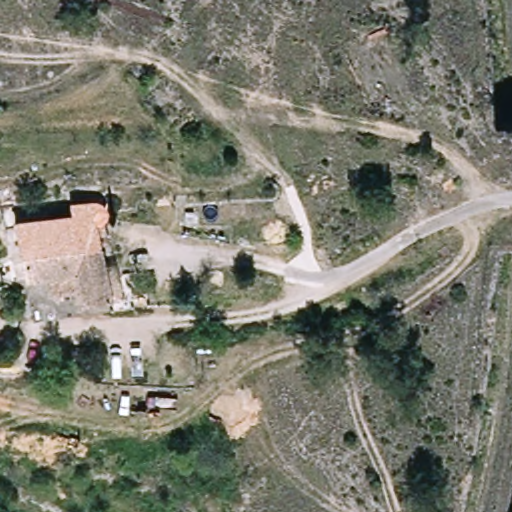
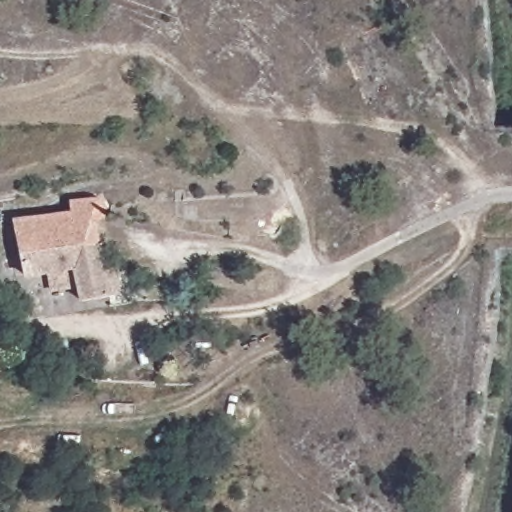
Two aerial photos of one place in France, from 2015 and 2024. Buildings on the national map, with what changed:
unchanged [(12,218),(73,209),(73,199),(109,195),(114,215),(101,217),(128,305),(35,315),(27,291),(52,292),(48,273),(30,275),(12,218)]

